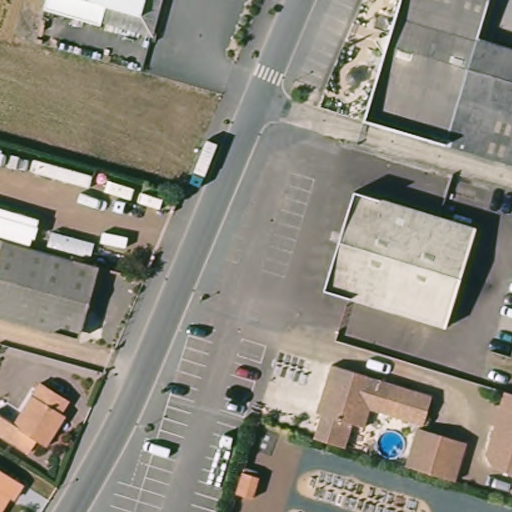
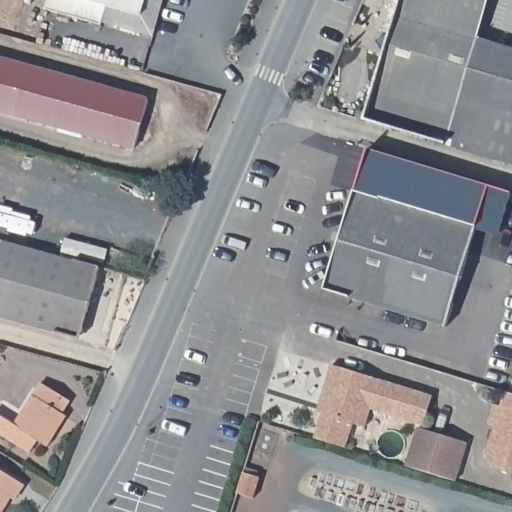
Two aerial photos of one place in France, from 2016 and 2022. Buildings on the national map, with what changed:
unchanged [(99,21),(99,26),(42,8),(44,0),(161,0),(150,36),(99,21)]
unchanged [(397,20),(403,0),(491,0),(479,46),(397,20)]
unchanged [(479,46),(512,55),(512,168),(364,125),(397,20),(479,46)]
new [(139,152),(0,113),(0,61),(152,104),(139,152)]
unchanged [(470,232),(439,329),(318,291),(349,194),(470,232)]
unchanged [(81,332),(72,337),(0,317),(0,247),(2,240),(99,266),(81,332)]
unchanged [(322,403),(334,364),(384,378),(438,395),(429,424),(375,408),(369,428),(356,424),(349,446),(319,437),(326,416),(319,413),(322,403)]
unchanged [(31,384),(61,403),(41,433),(48,438),(39,452),(29,446),(22,457),(0,442),(0,425),(4,428),(31,384)]
unchanged [(490,467),(484,454),(492,425),(486,423),(492,404),(498,406),(503,392),(512,394),(512,473),(490,467)]
unchanged [(464,482),(432,471),(413,466),(424,430),(443,435),(477,444),(464,482)]
unchanged [(1,512),(0,512),(0,474),(19,486),(1,512)]
unchanged [(254,481),(246,505),(230,500),(238,477),(254,481)]

